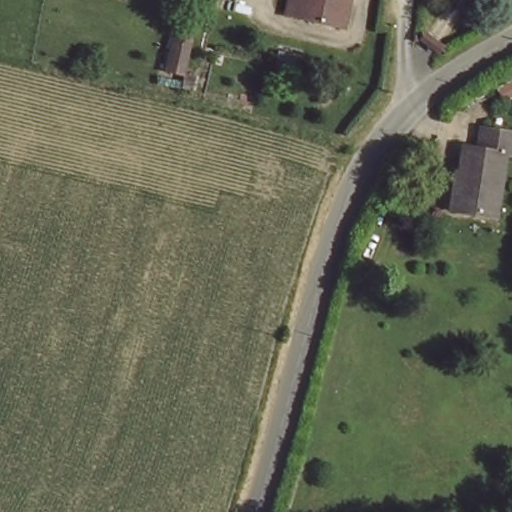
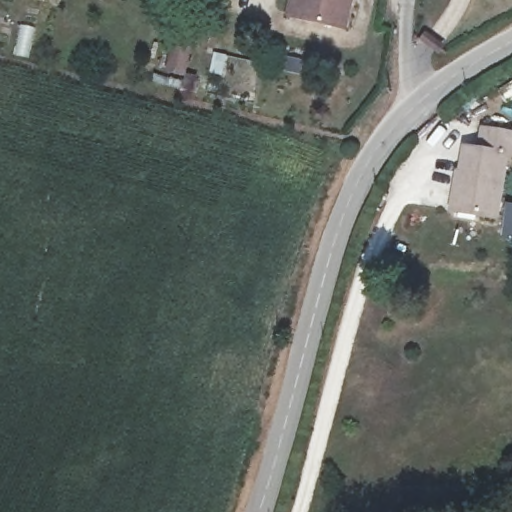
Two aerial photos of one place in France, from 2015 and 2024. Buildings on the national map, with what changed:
unchanged [(280,14),(285,0),(352,0),(344,32),(280,14)]
unchanged [(179,48),(172,75),(157,71),(164,45),(179,48)]
unchanged [(463,176),(468,149),(480,151),(485,128),(512,134),(512,157),(507,156),(493,218),(451,209),(458,175),(463,176)]

